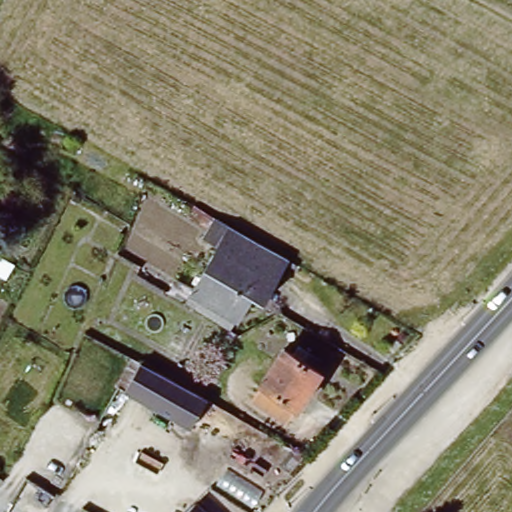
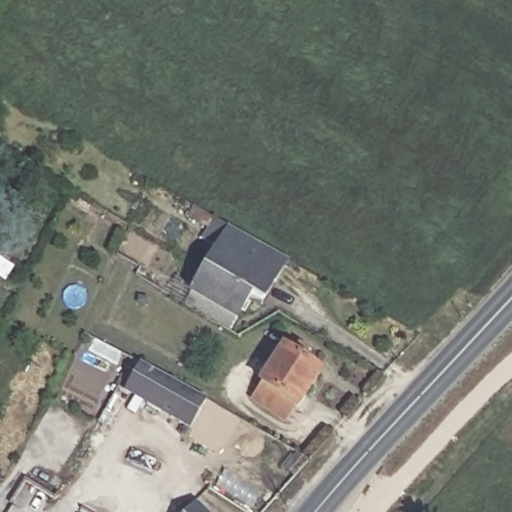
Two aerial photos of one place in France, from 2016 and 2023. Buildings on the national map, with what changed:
unchanged [(220,238),(210,232),(214,224),(224,230),(220,238)]
unchanged [(273,286),(214,252),(222,239),(226,231),(238,238),(285,266),(273,286)]
unchanged [(182,308),(187,299),(214,252),(273,286),(260,309),(246,301),(232,326),(227,335),(182,308)]
unchanged [(248,402),(258,386),(285,342),(292,346),(295,341),(305,347),(300,354),(321,368),(297,410),(290,406),(280,422),(248,402)]
unchanged [(106,423),(143,358),(205,394),(187,425),(138,397),(115,436),(102,430),(106,423)]
unchanged [(301,473),(286,464),(299,448),(315,457),(301,473)]
unchanged [(194,512),(189,512),(190,510),(194,512)]

